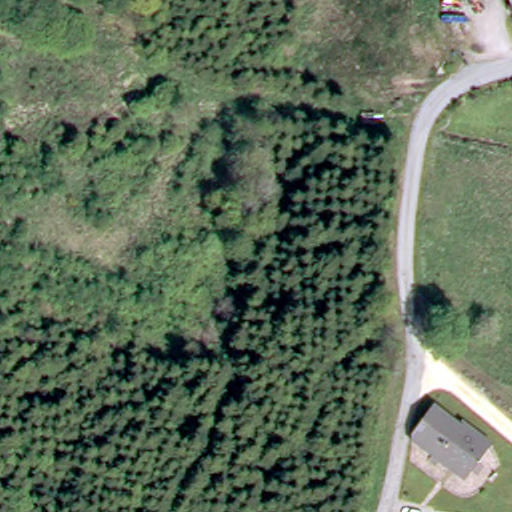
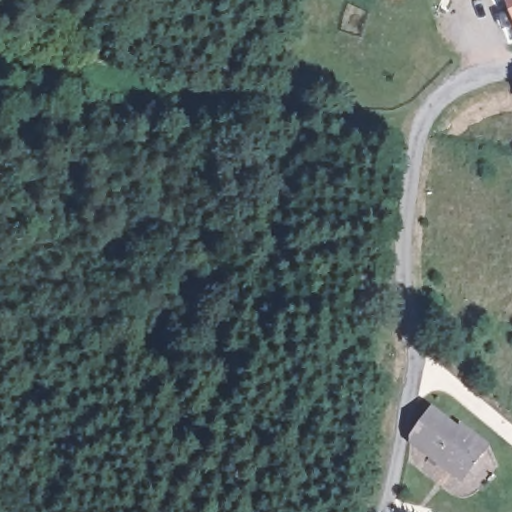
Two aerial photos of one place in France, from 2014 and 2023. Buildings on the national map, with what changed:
unchanged [(512,0),(512,14),(506,0),(512,0)]
unchanged [(463,423),(491,441),(470,471),(425,443),(415,436),(428,416),(429,410),(458,427),(463,423)]

